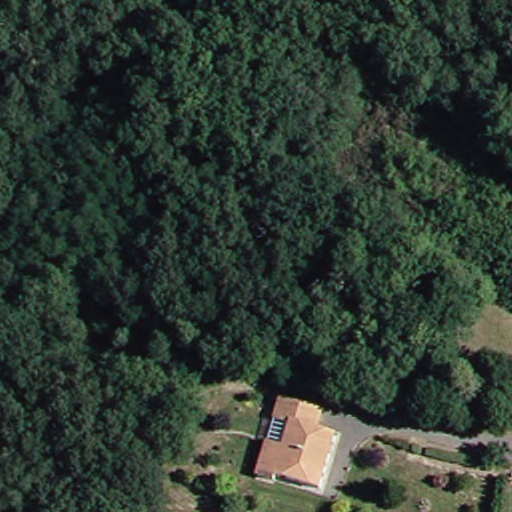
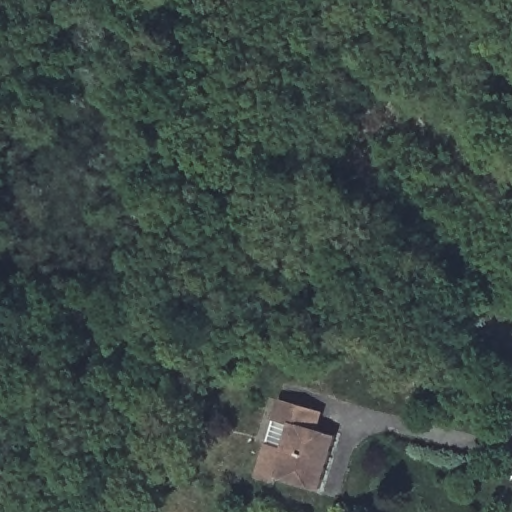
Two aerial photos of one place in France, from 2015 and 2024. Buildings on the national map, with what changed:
unchanged [(330,410),(325,431),(341,435),(325,487),(282,475),(280,480),(261,474),(273,440),(280,417),(287,396),(330,410)]

